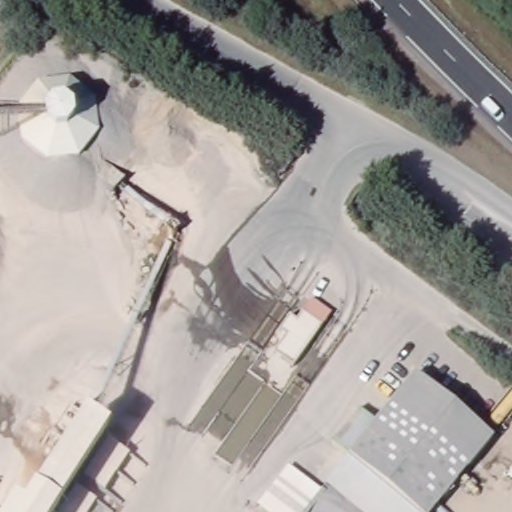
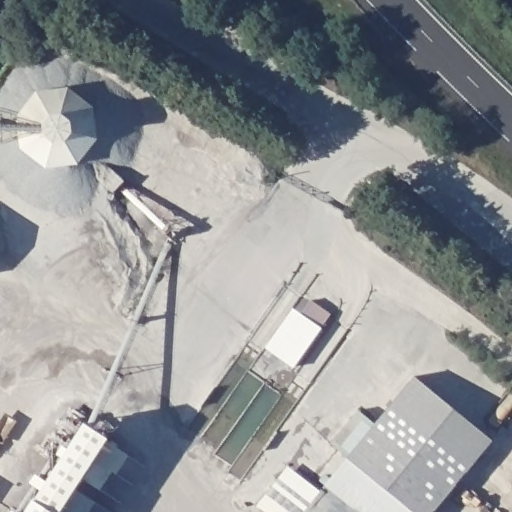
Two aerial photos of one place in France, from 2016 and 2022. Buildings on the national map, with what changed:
unchanged [(17,145),(19,103),(42,85),(70,84),(96,102),(97,136),(79,163),(45,165),(17,145)]
unchanged [(296,366),(277,352),(289,336),(281,328),(289,317),(298,320),(313,300),(333,311),(296,366)]
unchanged [(410,512),(348,457),(334,446),(322,461),(311,447),(345,402),(377,421),(415,378),(495,437),(435,512),(410,512)]
unchanged [(22,512),(84,422),(111,435),(61,512),(22,512)]
unchanged [(410,512),(359,512),(325,484),(348,457),(410,512)]
unchanged [(19,512),(9,512),(13,505),(19,512)]

